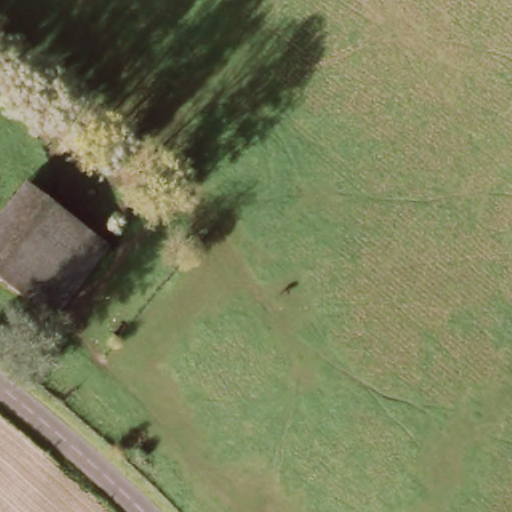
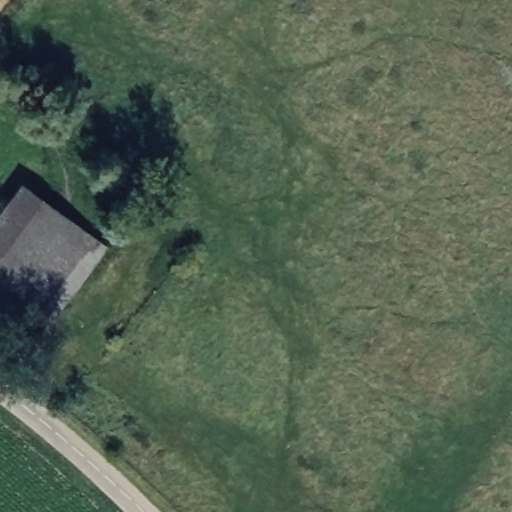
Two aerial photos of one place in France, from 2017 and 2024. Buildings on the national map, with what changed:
unchanged [(56,326),(0,284),(0,223),(28,187),(110,249),(56,326)]

